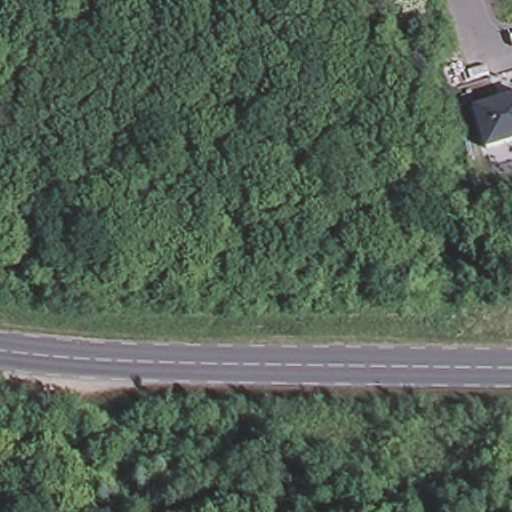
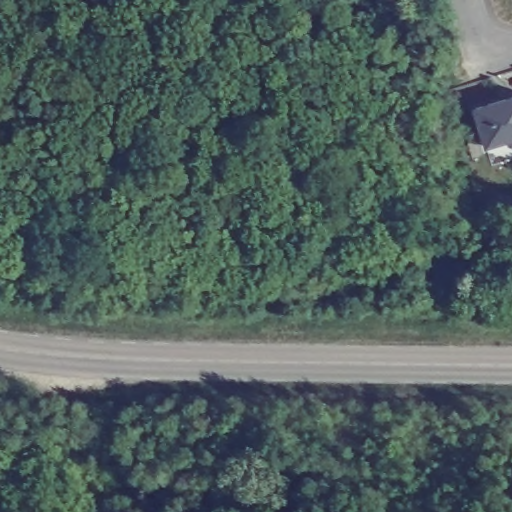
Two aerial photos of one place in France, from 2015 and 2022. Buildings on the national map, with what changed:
unchanged [(487,146),(475,107),(512,95),(512,139),(487,146)]

